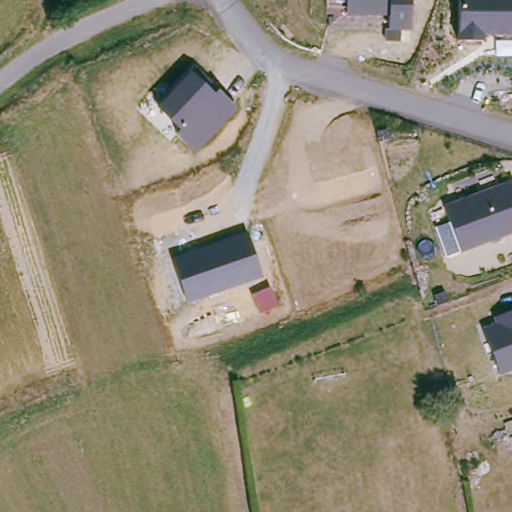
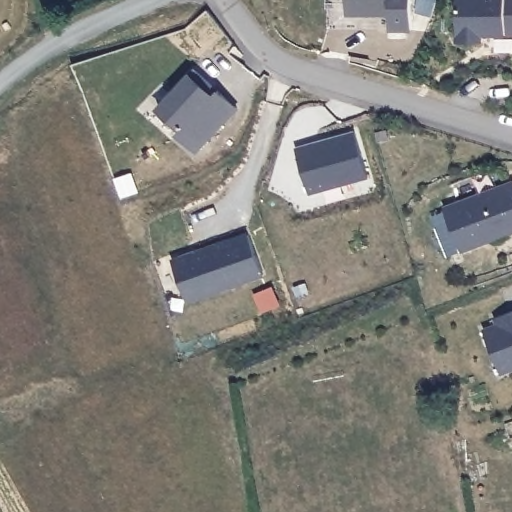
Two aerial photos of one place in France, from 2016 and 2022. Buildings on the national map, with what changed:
unchanged [(346,0),(411,0),(412,28),(390,28),(388,13),(346,12),(346,0)]
unchanged [(512,33),(507,33),(483,33),(483,39),(458,38),(458,0),(512,0),(512,33)]
unchanged [(174,130),(178,126),(155,104),(190,69),(195,66),(220,86),(235,103),(193,150),(174,130)]
new [(297,148),(356,130),(368,178),(310,194),(297,148)]
unchanged [(512,175),(512,177),(512,229),(459,250),(443,204),(512,175)]
unchanged [(187,303),(172,258),(248,232),(262,277),(187,303)]
unchanged [(495,322),(492,314),(512,307),(512,366),(497,371),(482,326),(495,322)]

